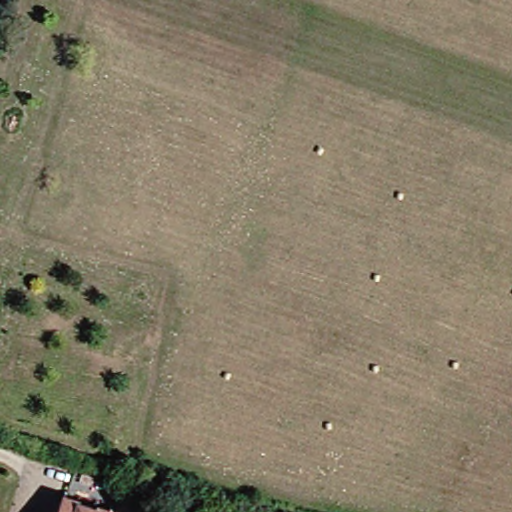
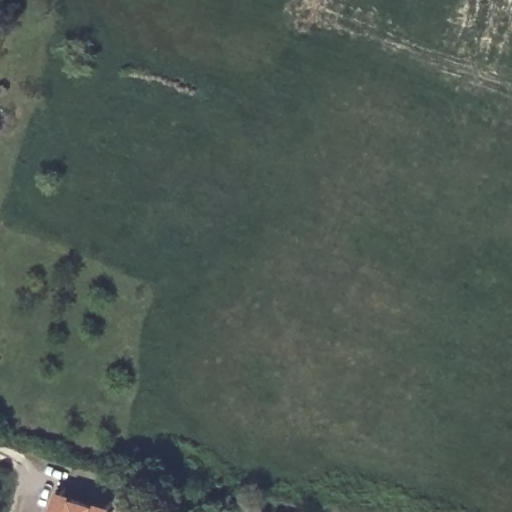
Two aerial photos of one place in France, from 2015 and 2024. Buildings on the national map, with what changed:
unchanged [(65,493),(92,501),(112,506),(110,512),(59,512),(65,493)]

